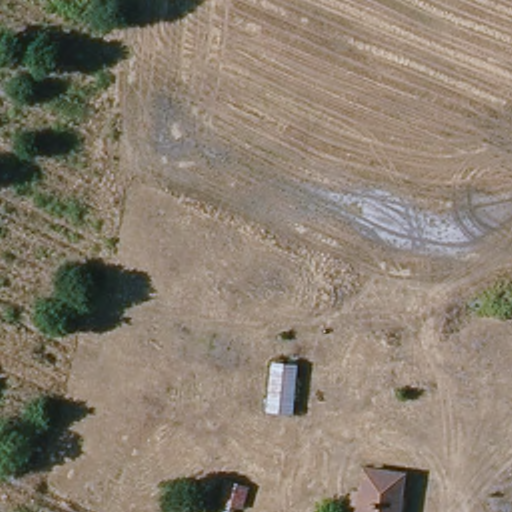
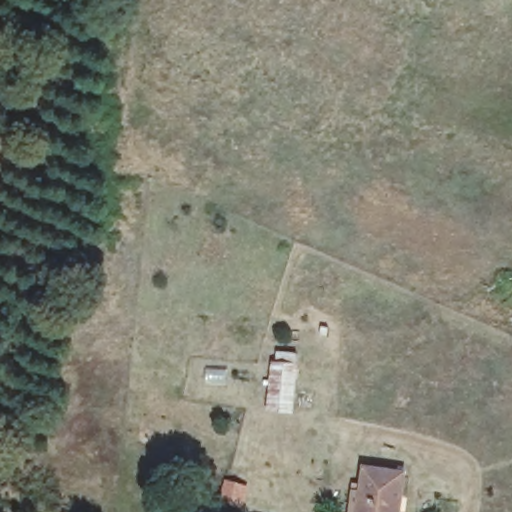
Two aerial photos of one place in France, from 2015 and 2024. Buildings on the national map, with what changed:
unchanged [(296,368),(290,410),(268,407),(275,365),(296,368)]
unchanged [(400,512),(364,512),(369,472),(405,476),(400,512)]
unchanged [(217,512),(226,481),(253,486),(244,512),(217,512)]

